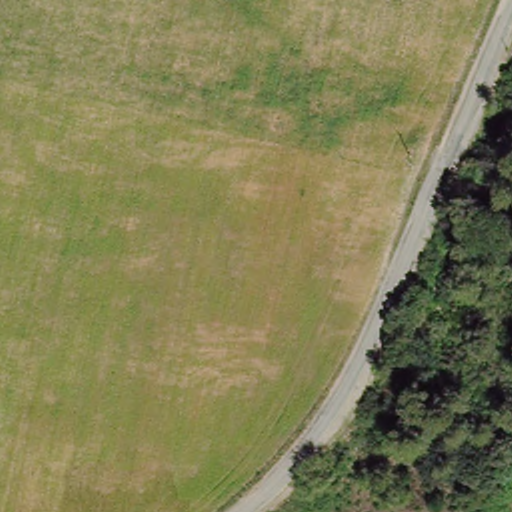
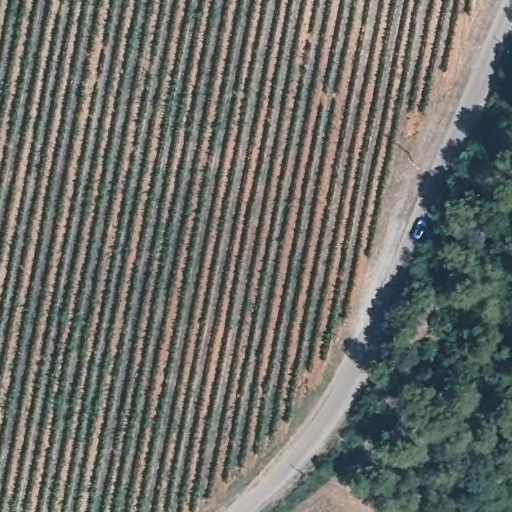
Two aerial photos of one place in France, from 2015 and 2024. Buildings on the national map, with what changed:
[]

